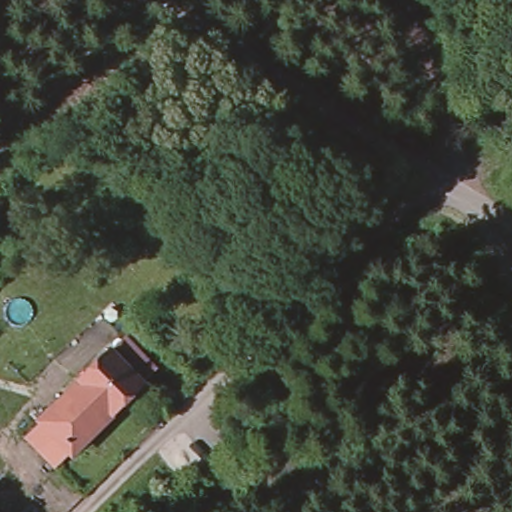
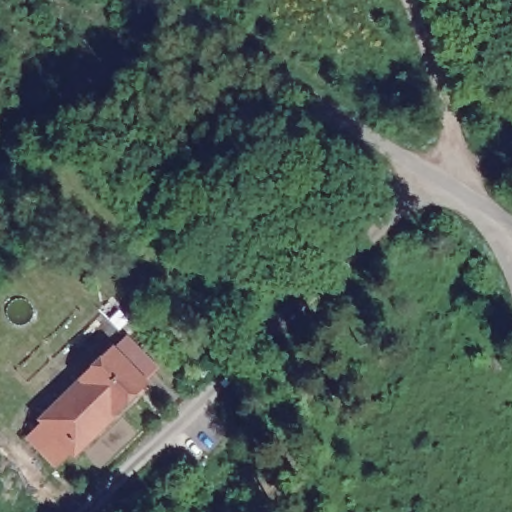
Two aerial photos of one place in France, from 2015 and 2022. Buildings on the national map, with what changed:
unchanged [(143,385),(113,415),(110,412),(79,383),(77,381),(107,351),(143,385)]
unchanged [(79,383),(110,412),(71,451),(58,465),(27,436),(41,422),(79,383)]

